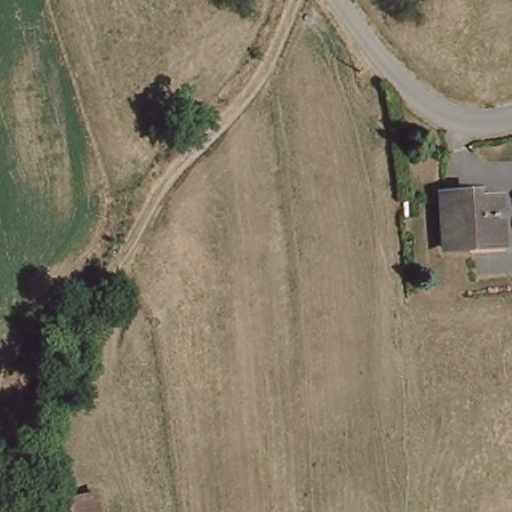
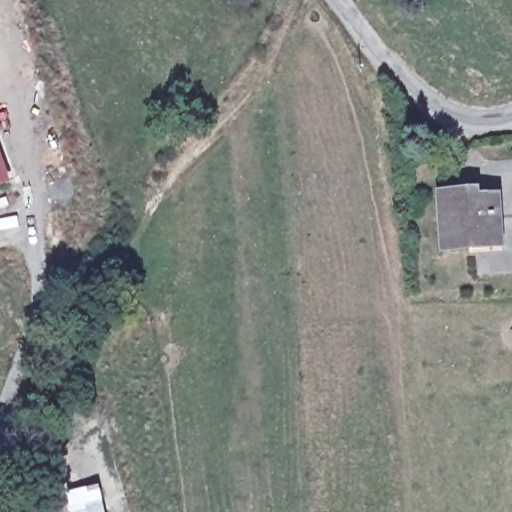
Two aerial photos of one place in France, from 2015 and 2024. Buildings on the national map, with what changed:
new [(12,182),(0,187),(0,148),(12,182)]
unchanged [(441,195),(477,194),(478,202),(493,202),(497,246),(445,249),(441,195)]
unchanged [(76,512),(74,503),(102,492),(107,512),(76,512)]

